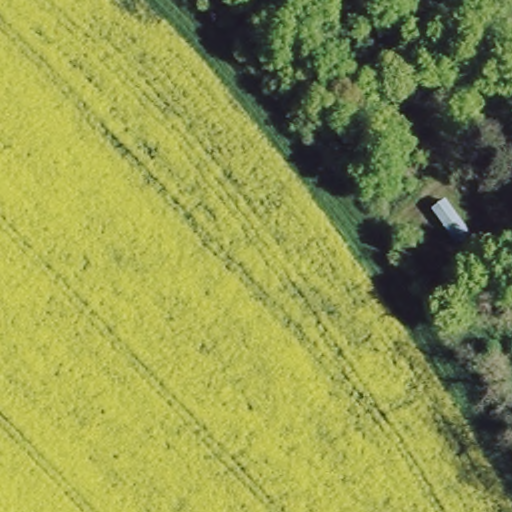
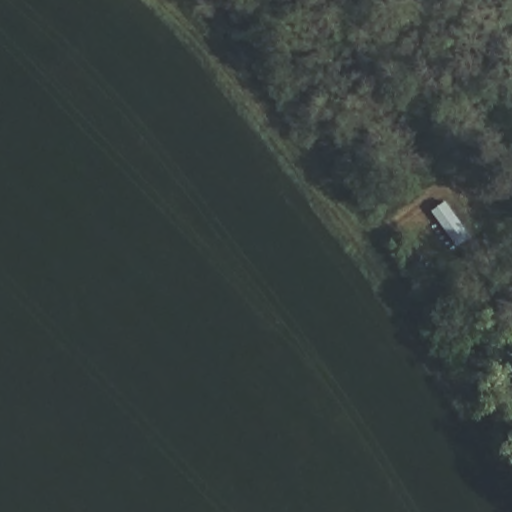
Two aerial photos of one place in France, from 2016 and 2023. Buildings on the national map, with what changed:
unchanged [(464,231),(451,241),(427,210),(440,199),(464,231)]

